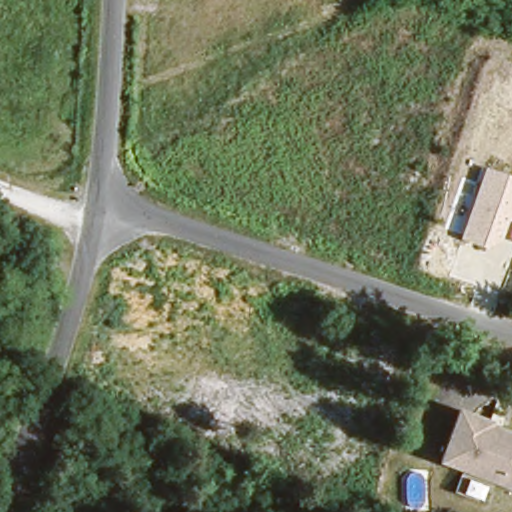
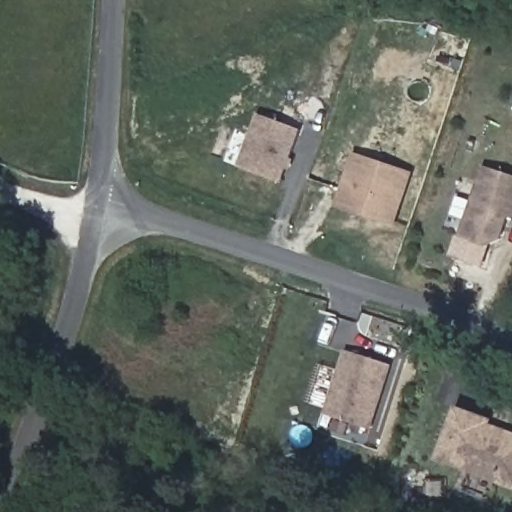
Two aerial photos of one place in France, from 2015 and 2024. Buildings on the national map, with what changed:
new [(294,160),(289,172),(286,171),(280,184),(238,167),(259,115),(300,131),(290,158),(294,160)]
new [(393,227),(335,208),(354,153),(412,172),(393,227)]
unchanged [(512,178),(512,219),(509,217),(502,239),(484,248),(459,240),(484,168),(512,178)]
new [(344,350),(390,365),(369,431),(323,417),(344,350)]
unchanged [(494,419),(494,424),(512,431),(512,490),(439,462),(457,408),(494,419)]

